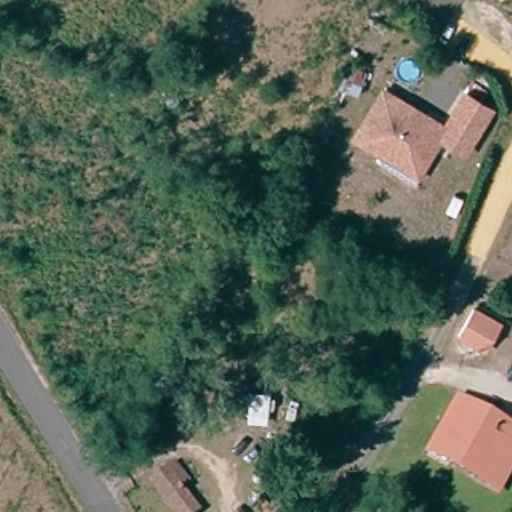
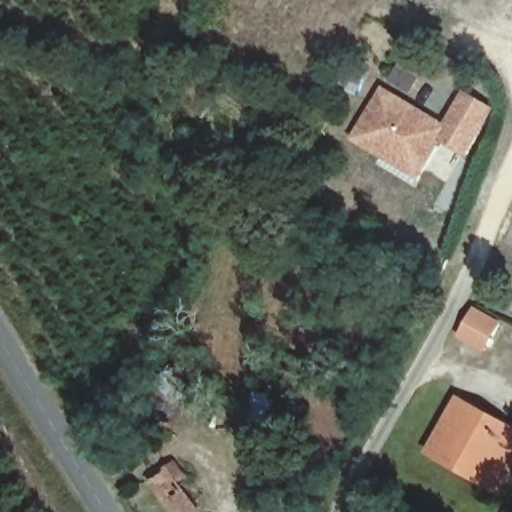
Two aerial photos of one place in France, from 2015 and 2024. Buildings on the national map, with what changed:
unchanged [(381,156),(353,138),(383,92),(444,131),(466,97),(489,111),(462,153),(439,138),(419,169),(414,177),(381,156)]
unchanged [(488,342),(462,329),(476,302),(502,316),(488,342)]
unchanged [(451,454),(446,462),(427,452),(458,402),(512,430),(512,437),(492,476),(451,454)]
unchanged [(512,437),(512,470),(501,492),(446,462),(451,454),(492,476),(512,437)]
unchanged [(183,512),(167,512),(151,481),(175,469),(195,506),(183,512)]

